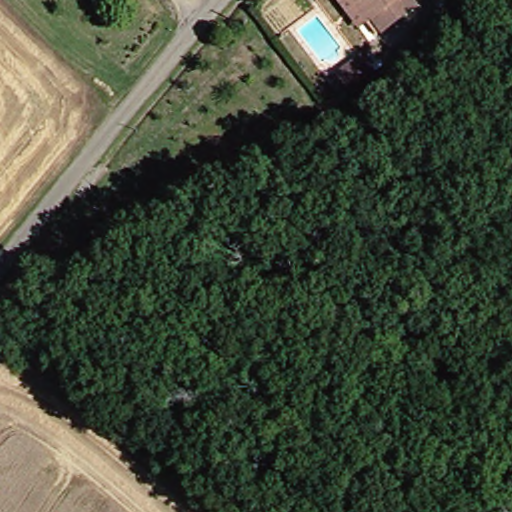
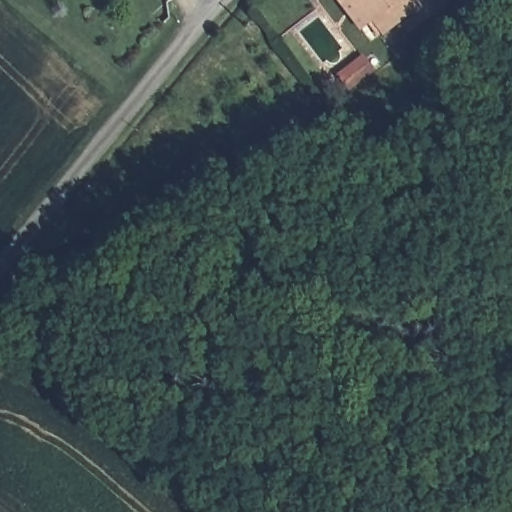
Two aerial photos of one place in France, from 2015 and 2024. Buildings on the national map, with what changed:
unchanged [(385,27),(374,14),(358,26),(340,2),(339,0),(414,0),(418,5),(385,27)]

